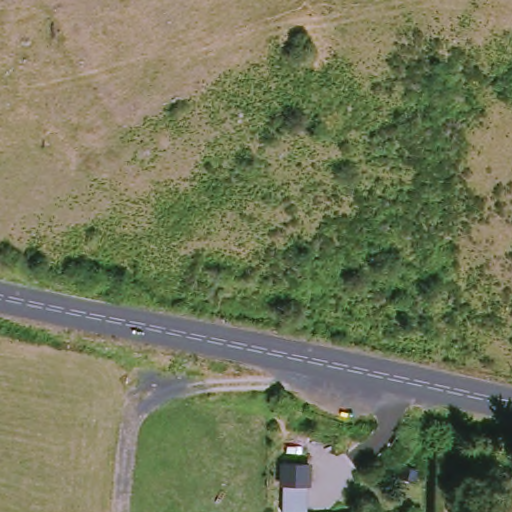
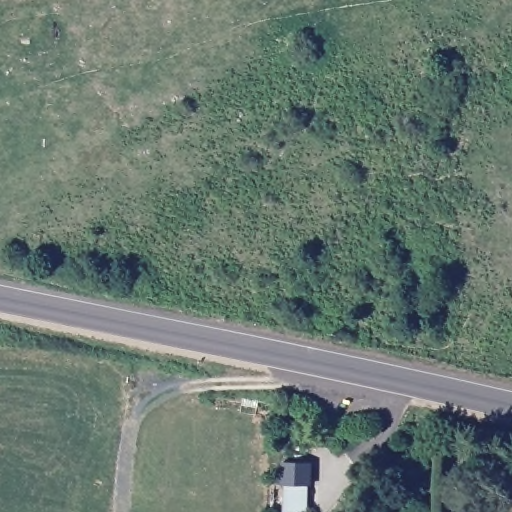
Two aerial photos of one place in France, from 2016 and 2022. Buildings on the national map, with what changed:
unchanged [(309,512),(296,512),(282,512),(281,463),(309,463),(309,512)]

